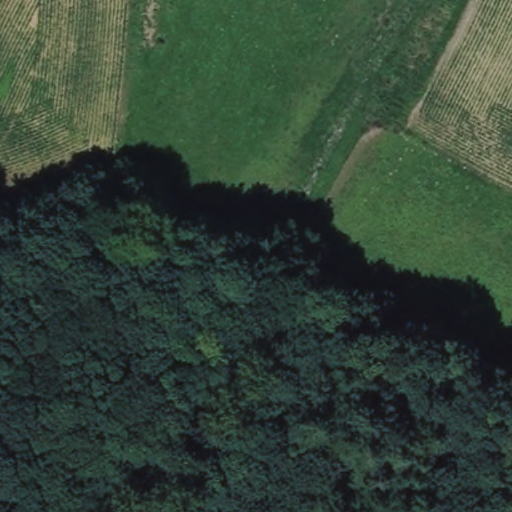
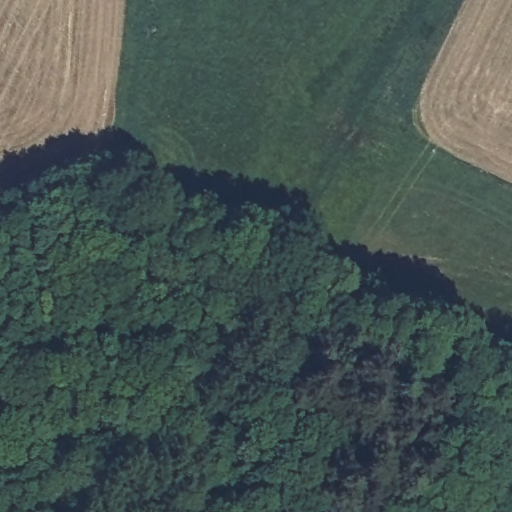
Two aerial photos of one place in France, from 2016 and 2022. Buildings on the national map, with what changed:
unchanged [(471,439),(493,456),(477,477),(456,462),(471,439)]

